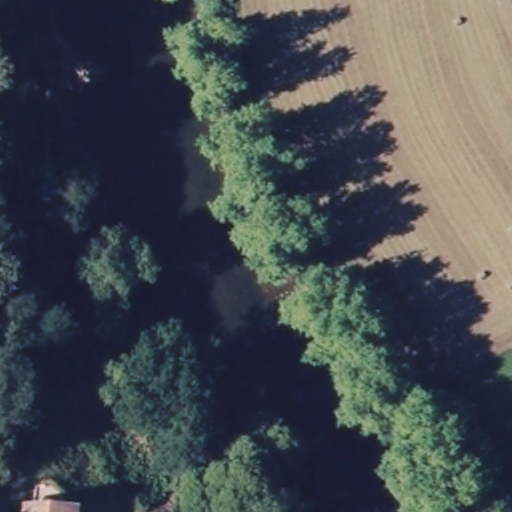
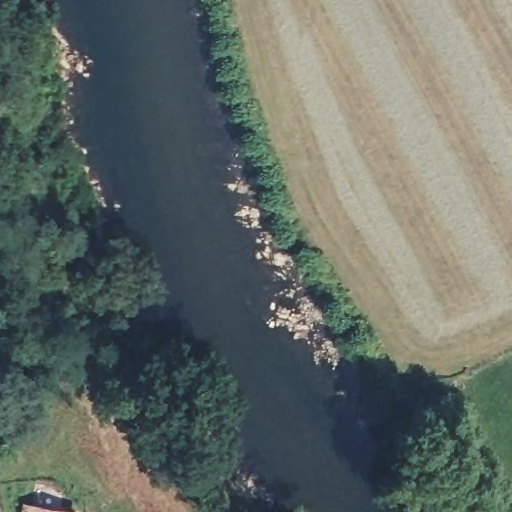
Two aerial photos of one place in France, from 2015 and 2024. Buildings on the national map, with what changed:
unchanged [(79,512),(27,512),(28,505),(79,512)]

